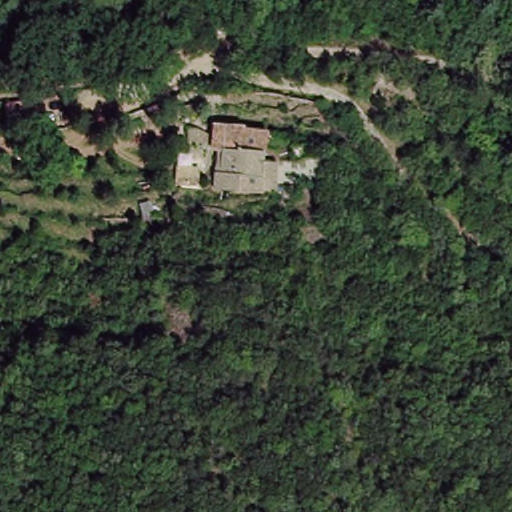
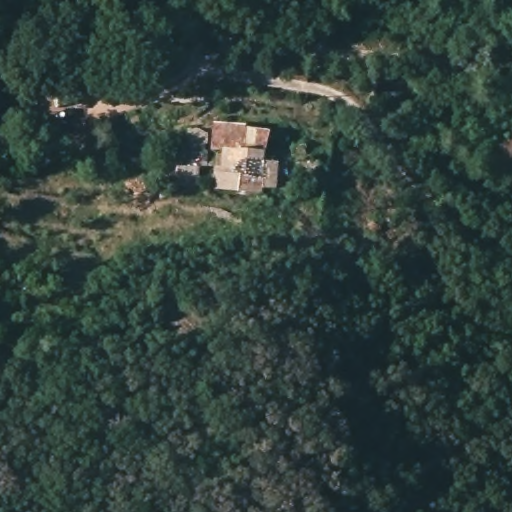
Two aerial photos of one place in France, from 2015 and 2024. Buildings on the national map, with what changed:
unchanged [(218,152),(211,150),(213,125),(267,128),(264,166),(279,169),(274,196),(213,191),(218,152)]

